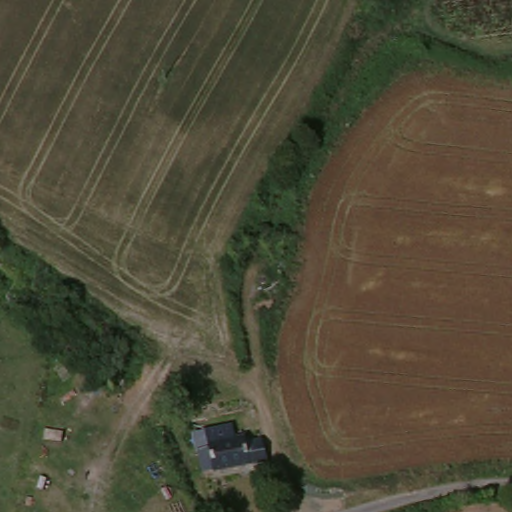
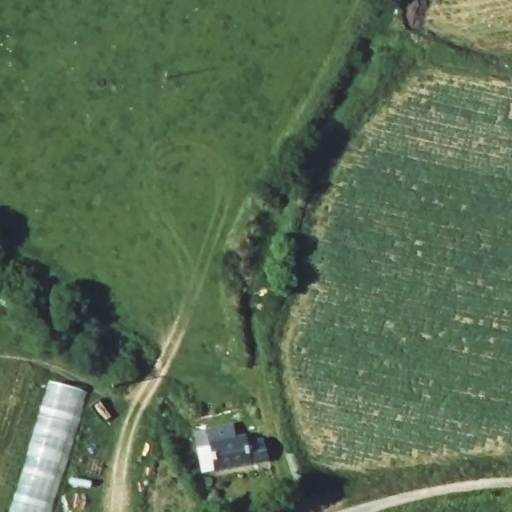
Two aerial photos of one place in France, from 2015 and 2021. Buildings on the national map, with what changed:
new [(84,391),(48,512),(14,512),(52,382),(84,391)]
unchanged [(197,451),(208,450),(208,435),(258,427),(265,463),(201,476),(197,451)]

